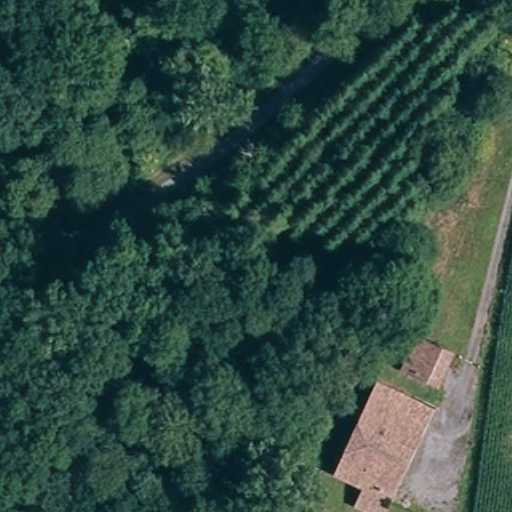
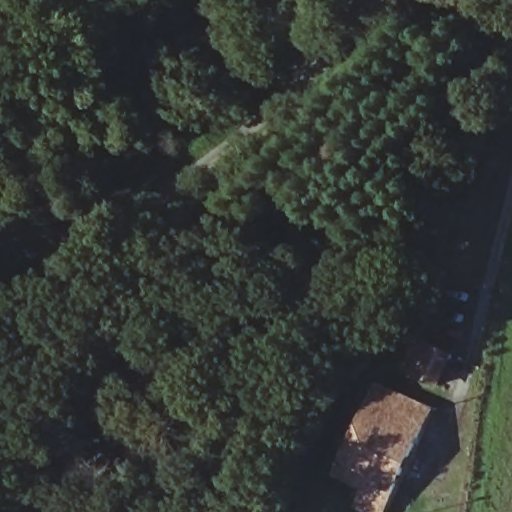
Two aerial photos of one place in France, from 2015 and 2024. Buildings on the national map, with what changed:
unchanged [(449,357),(431,388),(402,372),(416,342),(449,357)]
unchanged [(381,512),(370,512),(354,505),(361,485),(334,471),(375,388),(430,418),(384,506),(381,512)]

